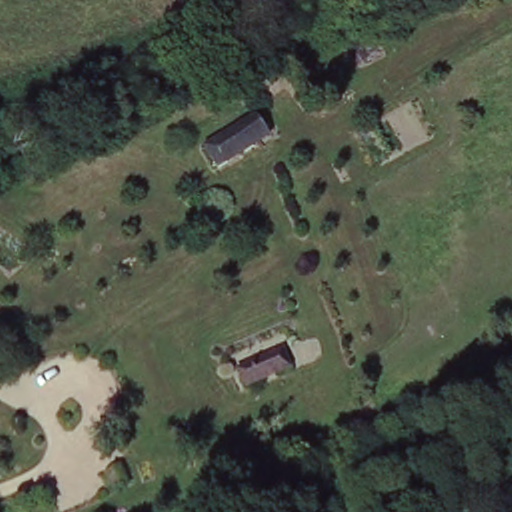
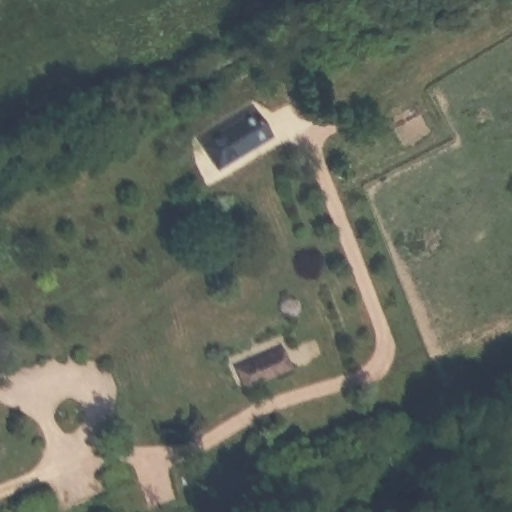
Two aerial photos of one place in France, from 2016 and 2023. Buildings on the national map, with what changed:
unchanged [(258,112),(270,136),(255,144),(217,163),(205,140),(243,120),(258,112)]
unchanged [(283,351),(290,367),(246,385),(239,367),(283,351)]
unchanged [(119,462),(126,478),(112,485),(105,468),(119,462)]

